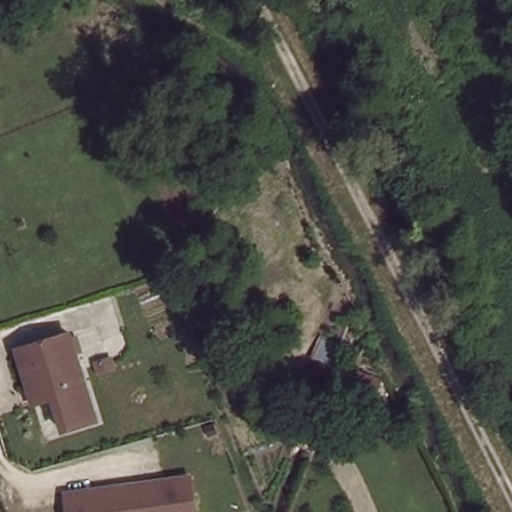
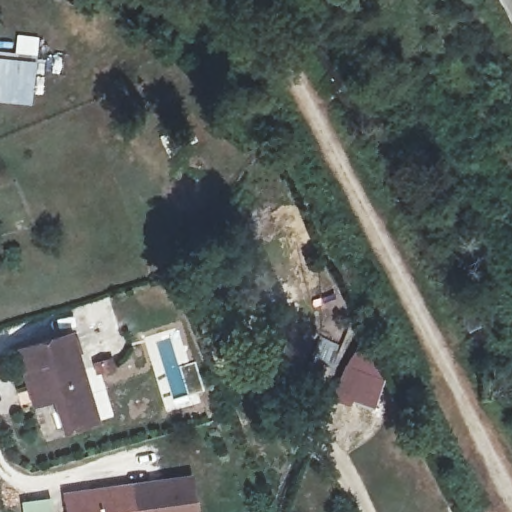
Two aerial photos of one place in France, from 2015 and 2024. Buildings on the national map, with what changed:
new [(36,61),(31,106),(0,103),(0,57),(36,61)]
unchanged [(23,370),(17,345),(70,332),(93,421),(61,429),(52,395),(31,400),(23,370)]
new [(317,336),(339,345),(329,367),(309,359),(317,336)]
new [(356,343),(389,356),(374,410),(351,403),(349,407),(329,401),(356,343)]
unchanged [(63,489),(191,472),(196,512),(66,512),(63,489)]

